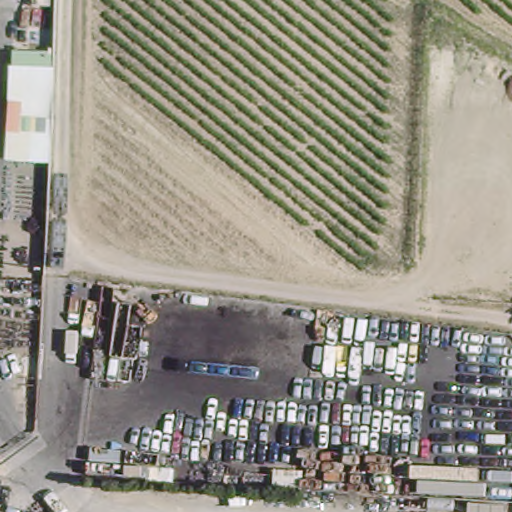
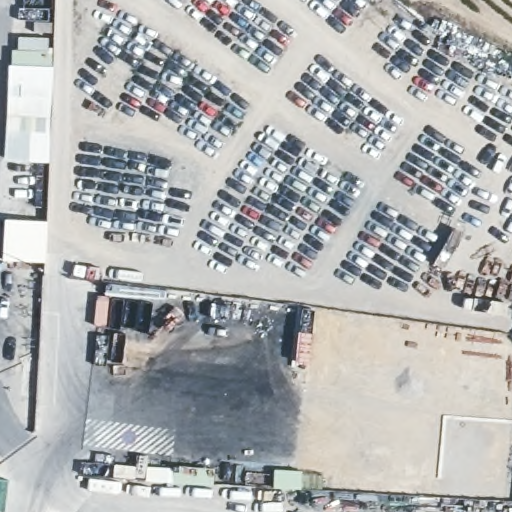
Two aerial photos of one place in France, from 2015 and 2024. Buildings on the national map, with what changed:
unchanged [(8,44),(53,45),(50,115),(5,111),(8,44)]
unchanged [(50,115),(47,161),(3,158),(5,111),(50,115)]
new [(3,259),(5,217),(48,222),(46,262),(3,259)]

